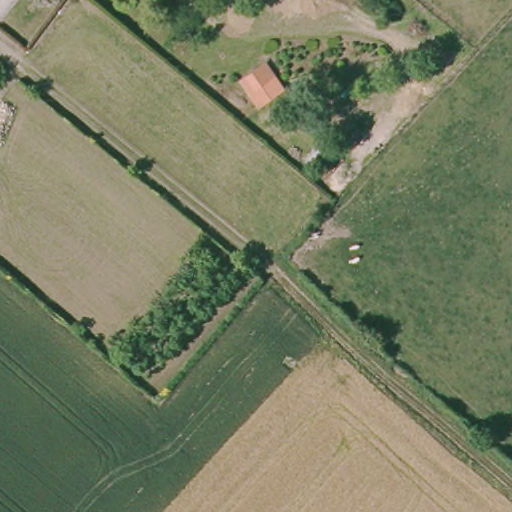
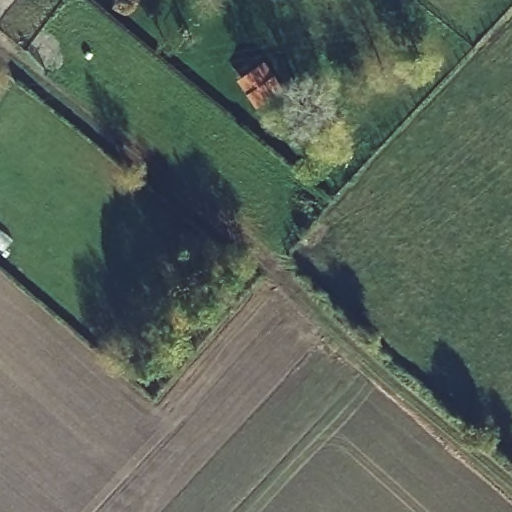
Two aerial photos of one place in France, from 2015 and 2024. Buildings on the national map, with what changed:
[]

